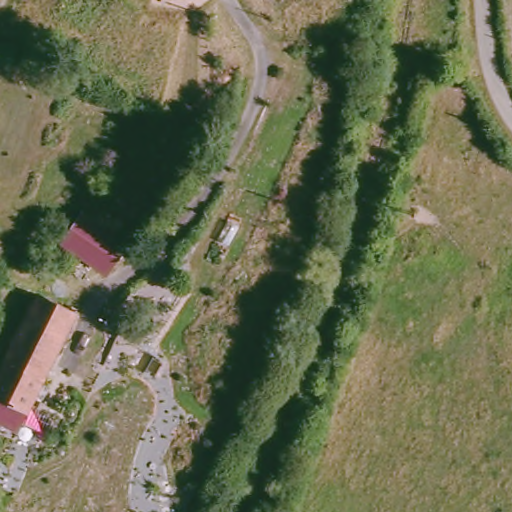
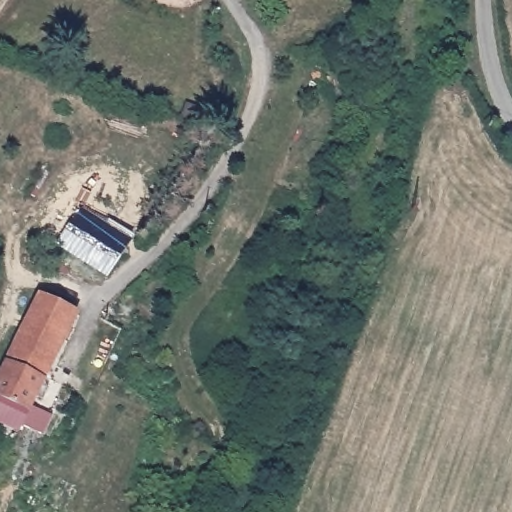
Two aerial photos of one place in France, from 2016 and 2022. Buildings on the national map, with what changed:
unchanged [(353,20),(349,40),(314,30),(319,10),(353,20)]
unchanged [(84,214),(129,241),(109,272),(65,245),(67,242),(84,214)]
unchanged [(4,431),(10,419),(0,414),(0,405),(5,395),(0,392),(0,380),(41,293),(80,310),(18,438),(4,431)]

